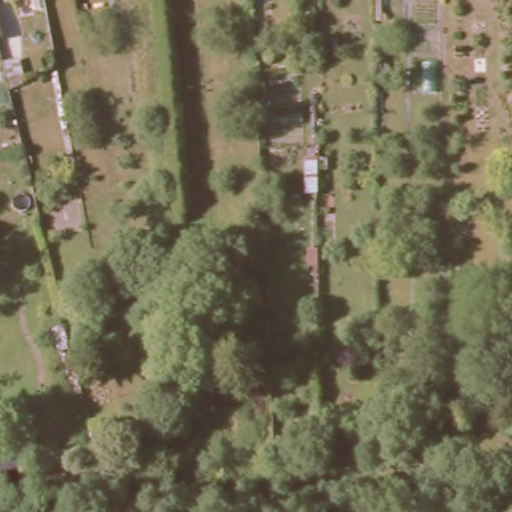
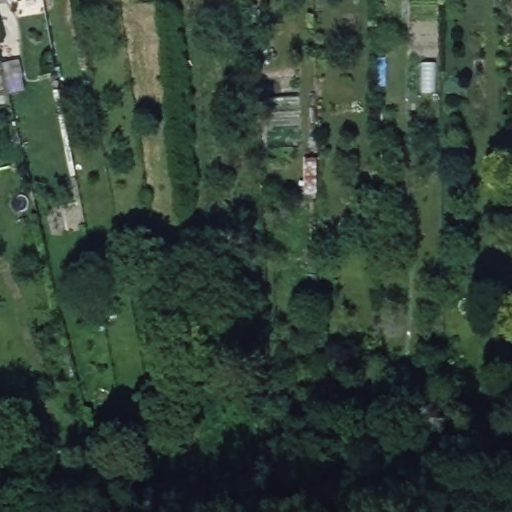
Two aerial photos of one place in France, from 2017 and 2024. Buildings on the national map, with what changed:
unchanged [(0,64),(17,61),(21,79),(3,83),(0,67),(0,64)]
unchanged [(63,457),(63,467),(42,468),(41,457),(63,457)]

